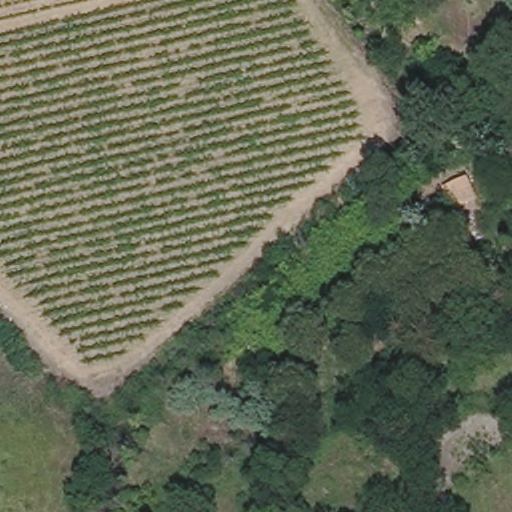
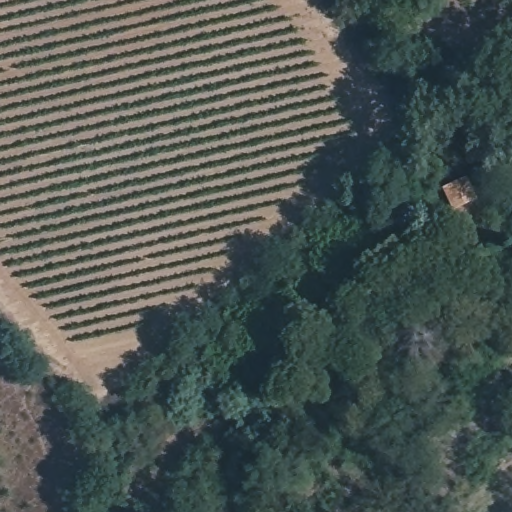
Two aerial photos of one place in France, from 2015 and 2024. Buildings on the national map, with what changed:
unchanged [(465,182),(476,203),(453,215),(443,194),(465,182)]

